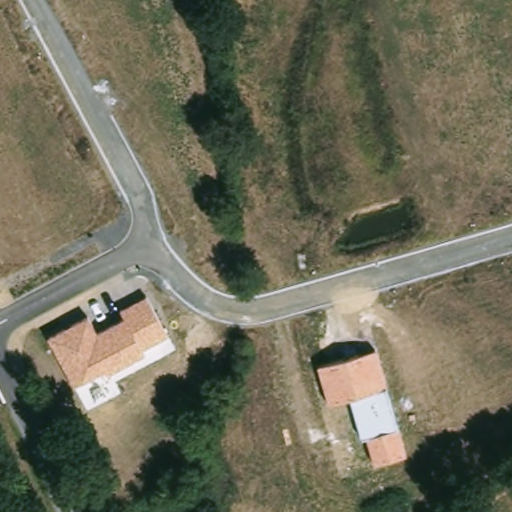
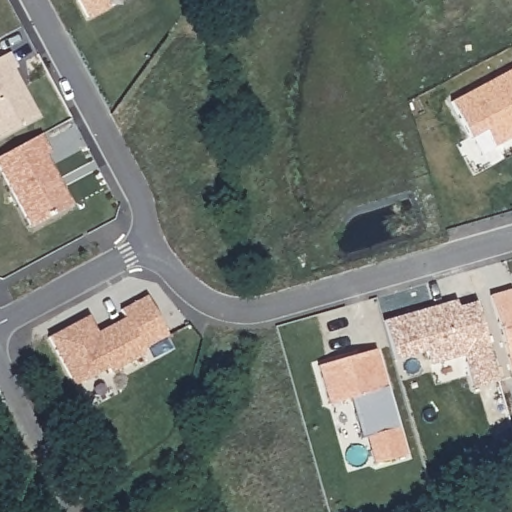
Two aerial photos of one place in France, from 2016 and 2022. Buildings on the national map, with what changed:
new [(109,9),(89,19),(79,0),(104,0),(109,9)]
new [(13,68),(39,118),(0,138),(0,57),(9,52),(18,66),(13,68)]
new [(495,147),(486,131),(470,139),(450,102),(512,70),(512,138),(495,147)]
new [(45,155),(72,205),(31,226),(0,168),(0,156),(41,134),(51,152),(45,155)]
new [(512,290),(512,374),(488,295),(512,288),(512,290)]
unchanged [(86,317),(94,332),(122,317),(117,308),(147,293),(166,336),(140,349),(142,354),(110,372),(108,368),(73,384),(48,335),(86,317)]
new [(500,383),(471,391),(465,371),(437,380),(427,352),(400,359),(387,321),(457,303),(458,308),(476,303),(500,383)]
unchanged [(373,350),(386,389),(407,455),(374,464),(367,438),(362,440),(350,399),(328,406),(318,367),(373,350)]

